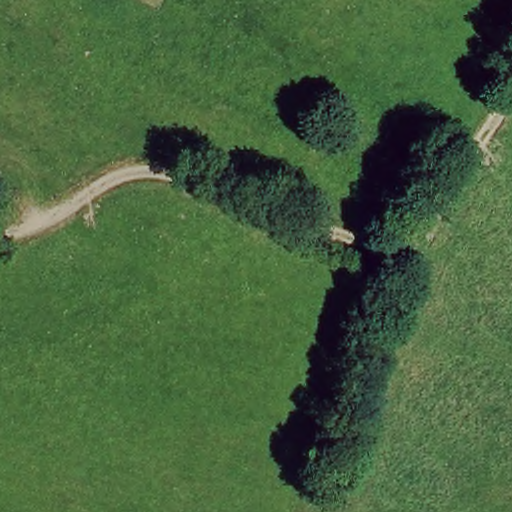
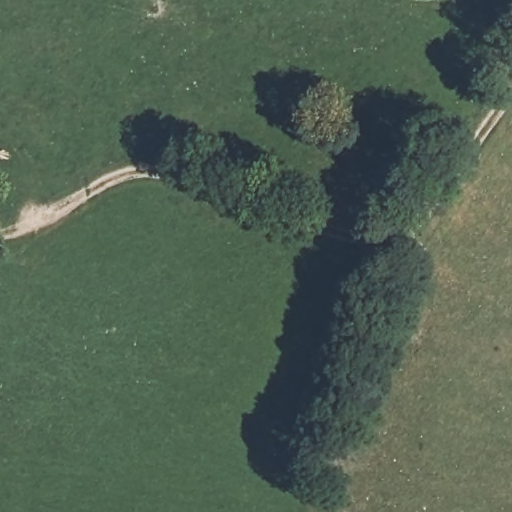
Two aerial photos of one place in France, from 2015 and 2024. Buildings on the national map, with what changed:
[]

